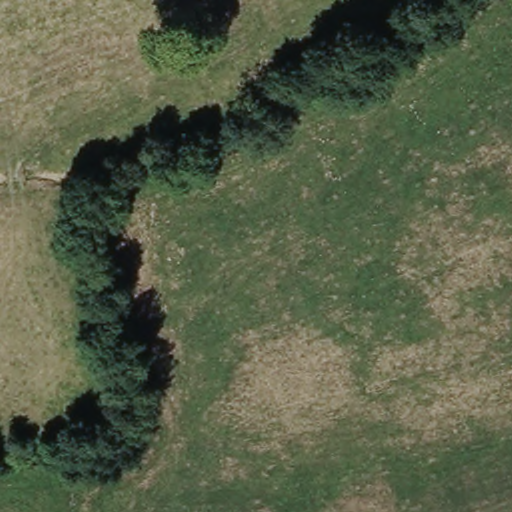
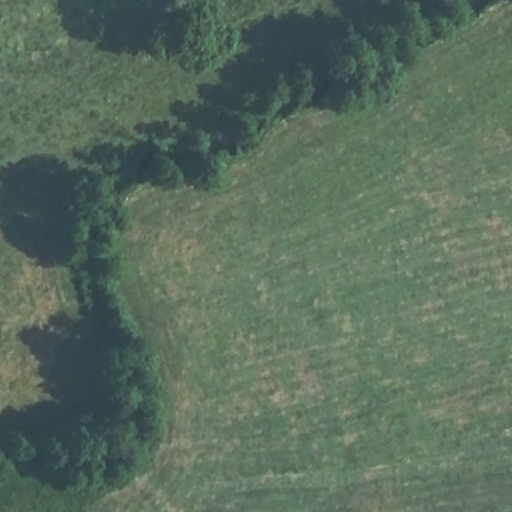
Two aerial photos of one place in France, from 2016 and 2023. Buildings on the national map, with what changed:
[]

